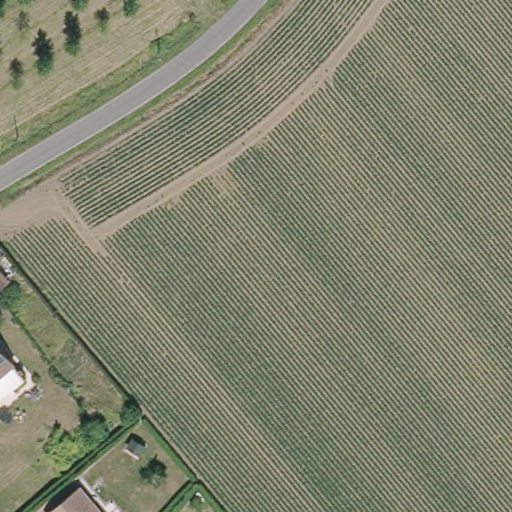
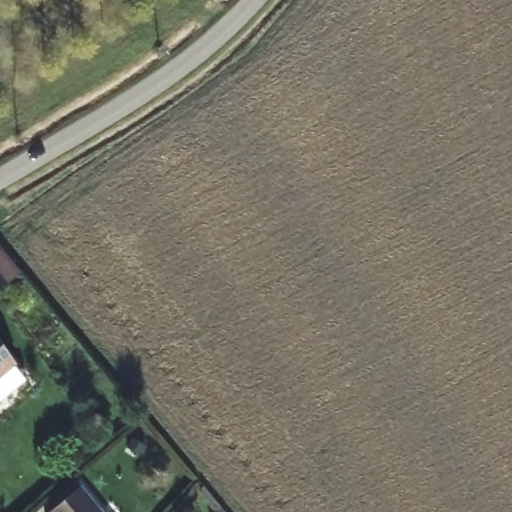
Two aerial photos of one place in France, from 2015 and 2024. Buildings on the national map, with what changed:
unchanged [(0,285),(0,271),(7,280),(0,285)]
unchanged [(15,359),(28,375),(0,398),(0,335),(18,357),(15,359)]
unchanged [(137,459),(124,450),(135,436),(147,445),(137,459)]
unchanged [(45,511),(78,482),(103,512),(46,512),(45,511)]

